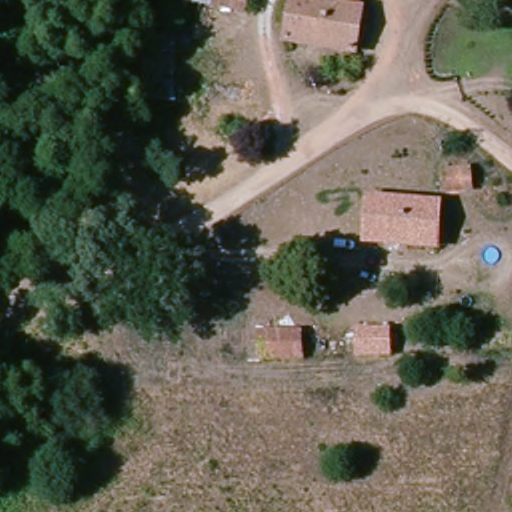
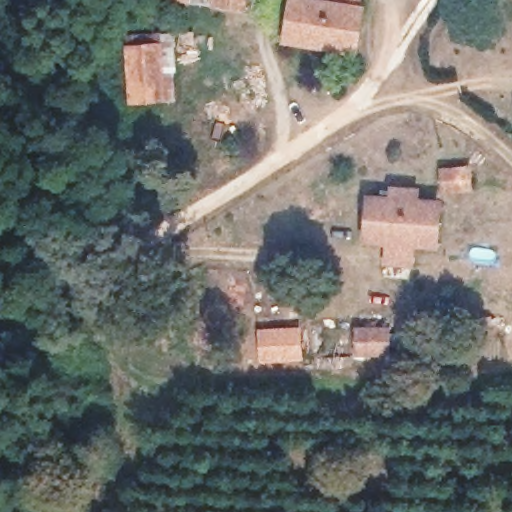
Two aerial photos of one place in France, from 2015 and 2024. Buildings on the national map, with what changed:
unchanged [(177,0),(208,0),(206,9),(177,0)]
unchanged [(217,7),(218,0),(257,0),(257,9),(217,7)]
unchanged [(284,0),(361,0),(357,43),(280,36),(284,0)]
new [(160,39),(159,34),(174,32),(176,100),(127,104),(124,40),(160,39)]
unchanged [(367,240),(373,197),(440,204),(437,248),(367,240)]
unchanged [(387,323),(387,348),(353,348),(356,322),(387,323)]
unchanged [(307,356),(257,360),(255,330),(306,325),(307,356)]

